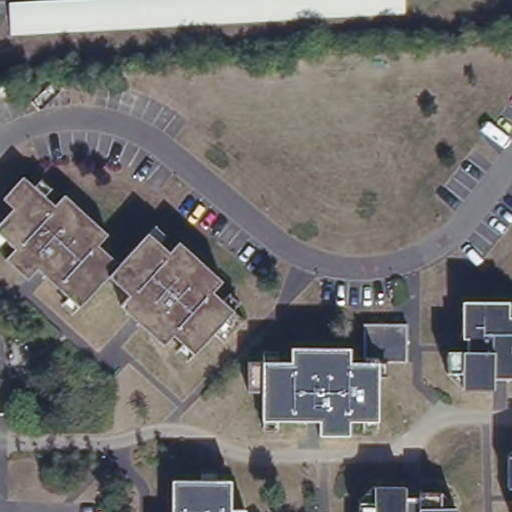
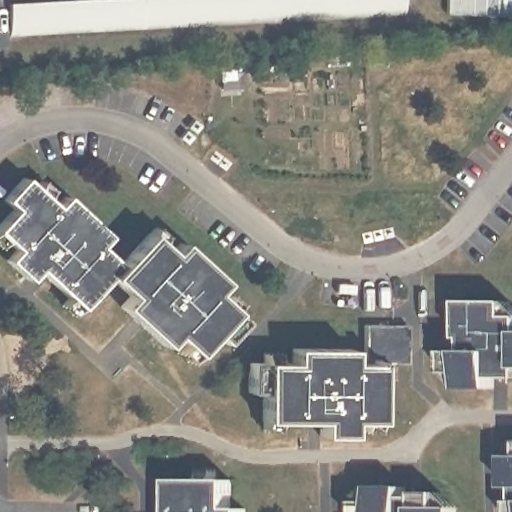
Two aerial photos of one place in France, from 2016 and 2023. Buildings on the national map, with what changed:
unchanged [(404,0),(405,16),(11,38),(9,3),(57,0),(404,0)]
new [(447,11),(448,0),(512,0),(512,14),(447,11)]
unchanged [(64,194),(108,234),(99,244),(120,263),(149,231),(169,251),(179,241),(223,280),(213,290),(244,320),(224,342),(214,332),(194,353),(173,334),(163,345),(120,304),(130,294),(109,275),(79,306),(37,269),(28,278),(6,258),(16,248),(0,234),(0,223),(14,207),(4,198),(23,175),(54,204),(64,194)]
unchanged [(508,301),(509,316),(512,316),(512,378),(493,378),(494,388),(461,388),(461,372),(446,372),(446,350),(466,351),(467,339),(461,338),(461,302),(508,301)]
unchanged [(350,347),(349,361),(363,361),(363,324),(407,324),(406,361),(378,361),(377,419),(349,420),(349,434),(318,434),(318,420),(261,419),(261,391),(248,391),(248,361),(290,361),(290,347),(350,347)]
unchanged [(235,479),(235,508),(249,508),(249,512),(176,512),(177,478),(235,479)]
unchanged [(409,485),(410,495),(423,496),(423,491),(445,492),(445,506),(462,506),(461,512),(363,512),(364,501),(378,501),(377,485),(409,485)]

